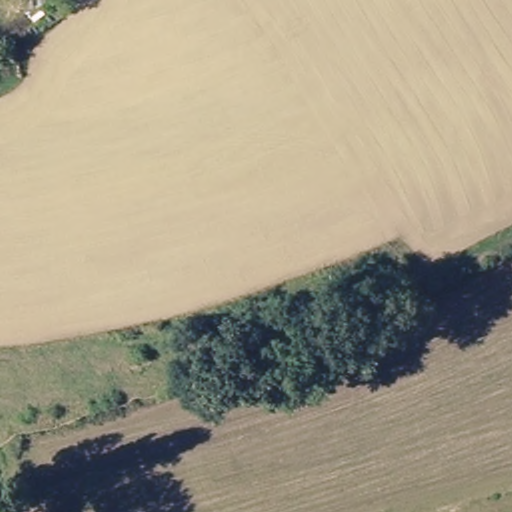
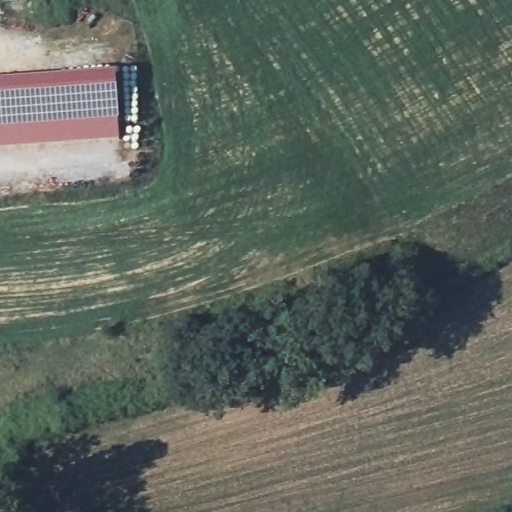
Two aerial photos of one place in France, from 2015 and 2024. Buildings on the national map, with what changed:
new [(119,139),(0,148),(0,82),(115,74),(119,139)]

